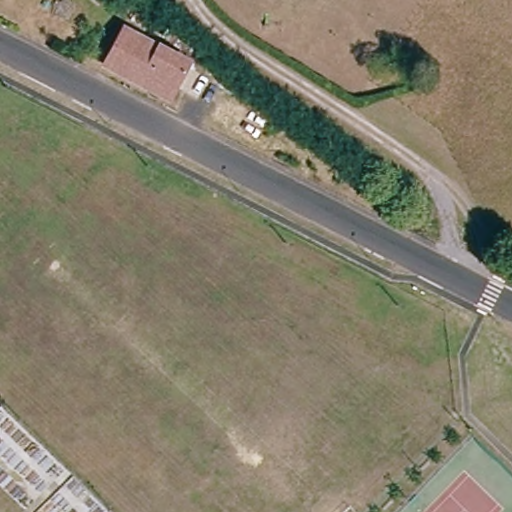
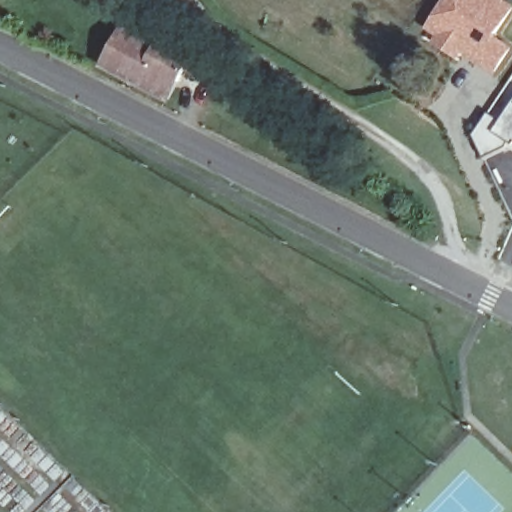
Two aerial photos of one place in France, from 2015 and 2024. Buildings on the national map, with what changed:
new [(424,30),(445,0),(504,0),(512,5),(512,14),(498,36),(512,47),(493,78),(431,42),(434,37),(424,30)]
unchanged [(168,85),(103,51),(122,15),(186,50),(168,85)]
new [(488,114),(500,122),(512,105),(512,147),(508,145),(485,160),(474,135),(488,114)]

